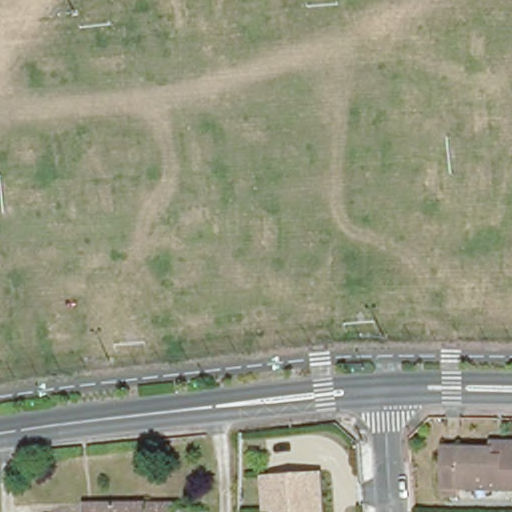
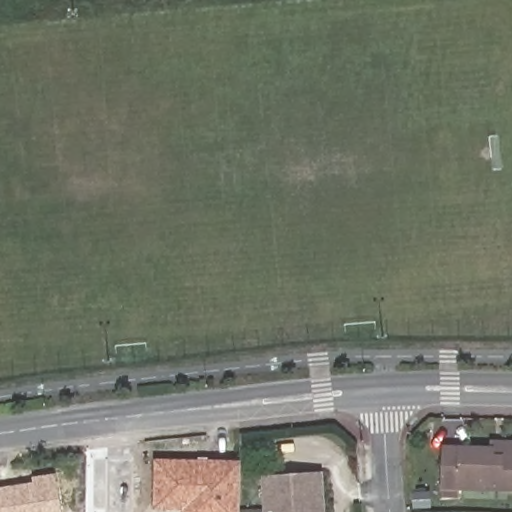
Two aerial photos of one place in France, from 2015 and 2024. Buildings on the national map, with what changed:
unchanged [(451,493),(452,451),(501,453),(501,460),(508,461),(508,458),(512,458),(512,495),(451,493)]
new [(239,512),(184,512),(184,510),(155,508),(155,460),(241,462),(239,512)]
new [(0,486),(57,477),(62,512),(0,512),(0,486)]
unchanged [(264,482),(320,478),(322,512),(277,512),(266,512),(264,482)]
demolished [(79,503),(171,502),(171,512),(79,512),(79,503)]

